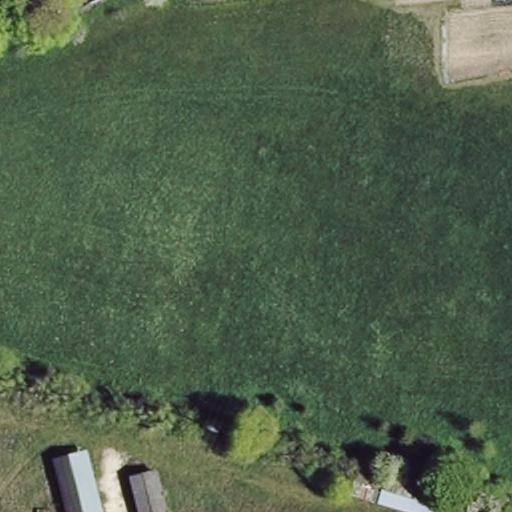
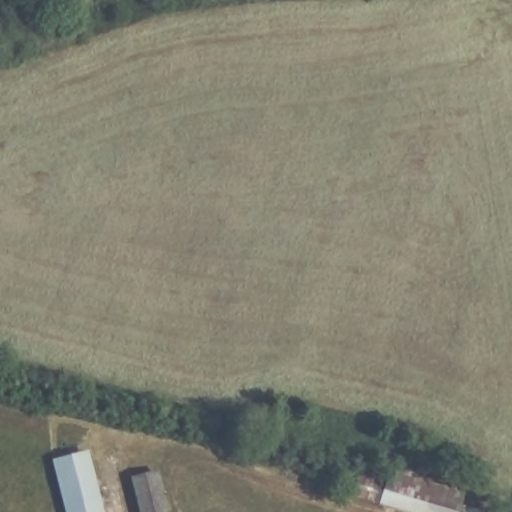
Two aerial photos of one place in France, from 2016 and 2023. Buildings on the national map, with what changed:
unchanged [(58,512),(42,462),(80,450),(99,512),(58,512)]
unchanged [(487,512),(415,512),(351,496),(359,469),(490,503),(487,512)]
unchanged [(141,512),(132,476),(156,470),(167,512),(141,512)]

